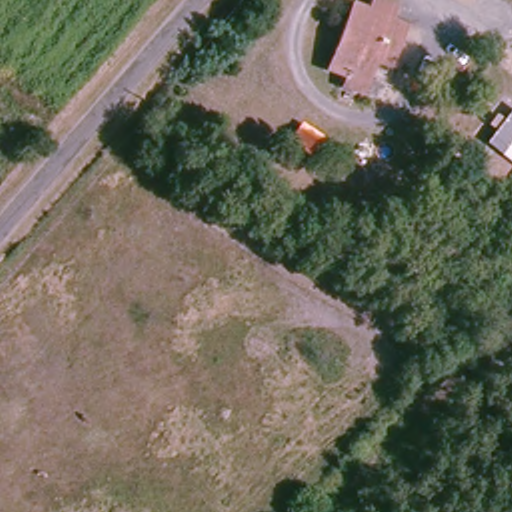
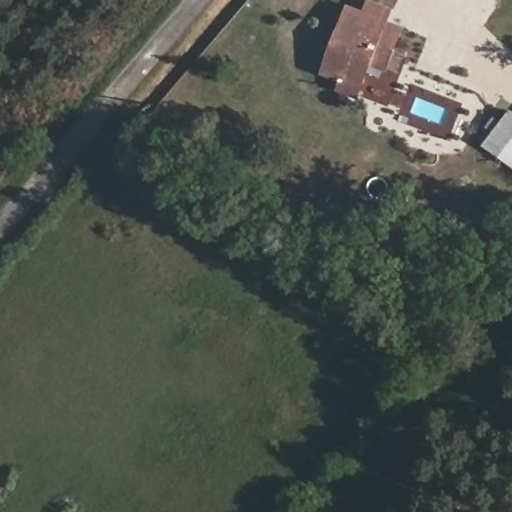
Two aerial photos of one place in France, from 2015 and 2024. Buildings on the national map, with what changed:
unchanged [(368,7),(371,0),(377,0),(399,8),(396,22),(408,25),(390,72),(376,70),(362,99),(337,90),(339,79),(327,74),(353,3),(368,7)]
unchanged [(512,110),(512,164),(483,143),(512,110)]

